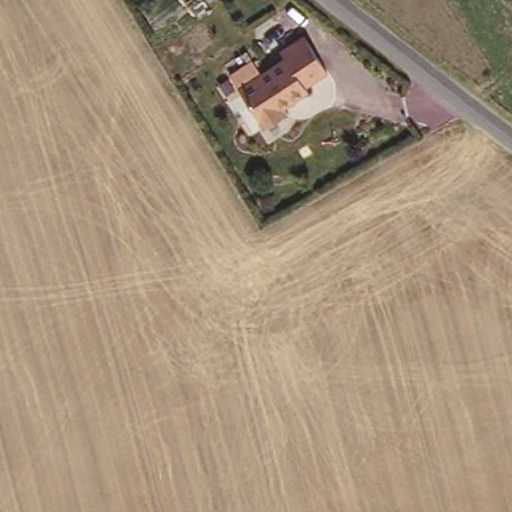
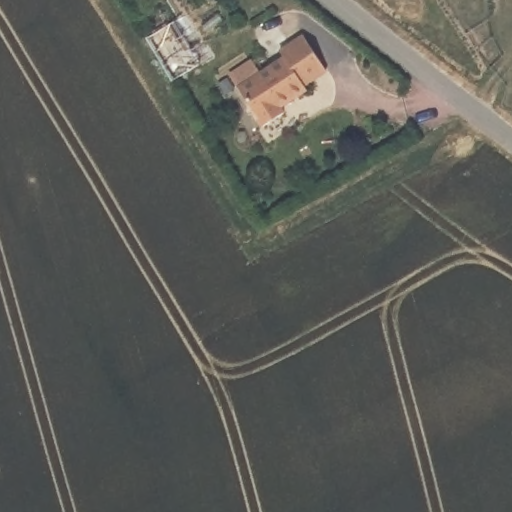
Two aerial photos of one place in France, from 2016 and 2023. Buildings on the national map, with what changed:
unchanged [(284,60),(280,50),(298,39),(321,74),(281,104),(285,111),(263,124),(239,88),(284,60)]

